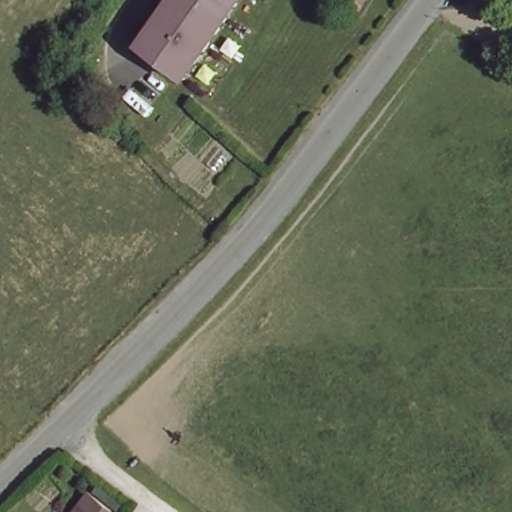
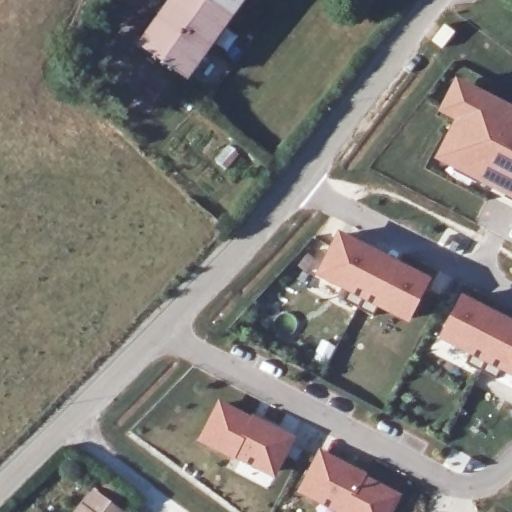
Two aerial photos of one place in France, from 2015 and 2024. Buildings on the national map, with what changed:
unchanged [(143,42),(175,0),(240,0),(186,71),(143,42)]
new [(456,119),(440,110),(458,76),(512,104),(512,196),(436,158),(456,119)]
new [(433,278),(410,324),(314,274),(339,229),(433,278)]
new [(512,376),(439,339),(462,293),(512,319),(512,376)]
new [(219,399),(251,417),(254,413),(297,436),(275,479),(233,457),(231,461),(197,442),(219,399)]
new [(366,474),(365,477),(401,495),(393,512),(334,512),(297,492),(319,449),(366,474)]
unchanged [(123,512),(80,512),(95,493),(123,512)]

